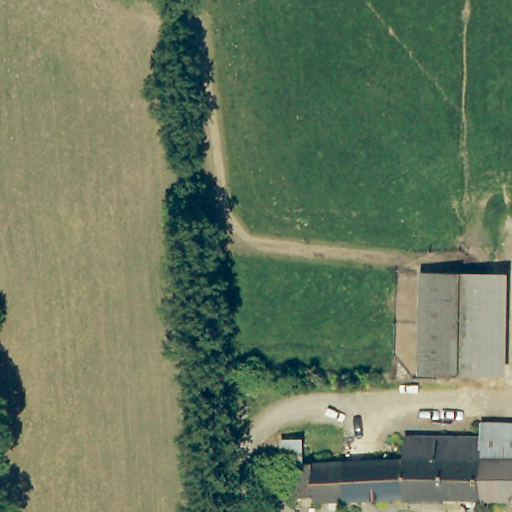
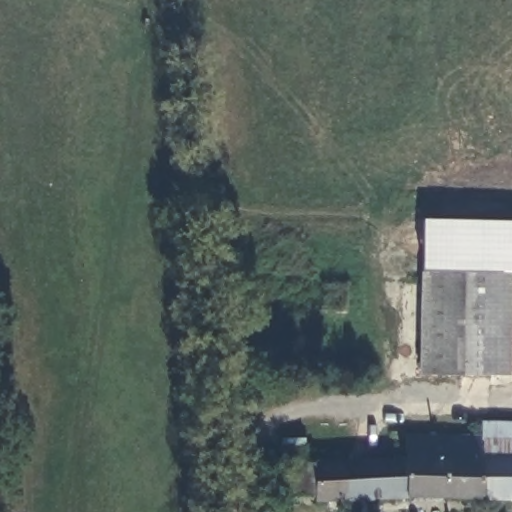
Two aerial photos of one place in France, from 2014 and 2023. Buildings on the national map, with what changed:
new [(424,221),(512,223),(512,273),(423,271),(424,221)]
unchanged [(431,376),(432,275),(506,276),(505,377),(431,376)]
unchanged [(314,465),(407,465),(407,441),(484,440),(484,426),(512,426),(512,502),(314,502),(314,497),(314,465)]
unchanged [(294,497),(294,464),(284,464),(283,445),(304,445),(305,465),(314,465),(314,497),(294,497)]

